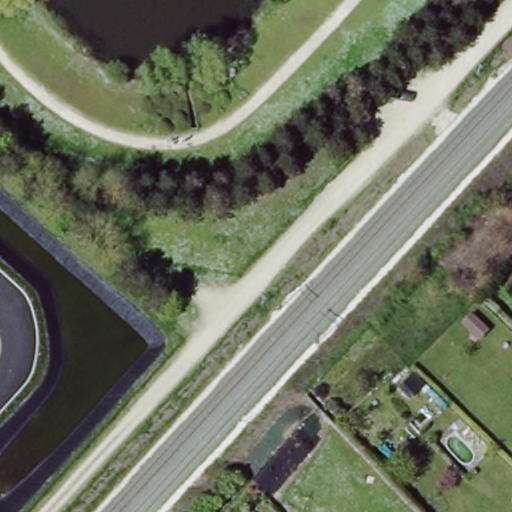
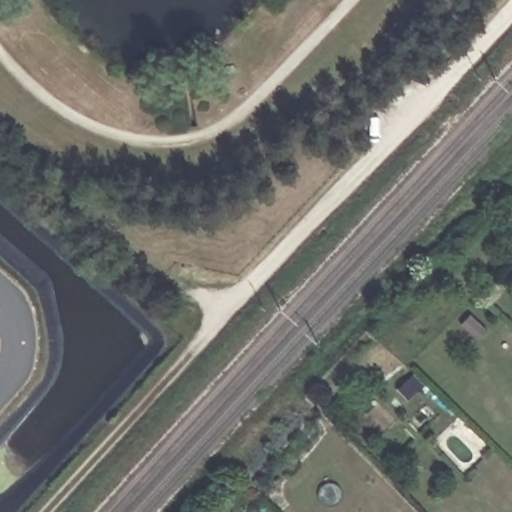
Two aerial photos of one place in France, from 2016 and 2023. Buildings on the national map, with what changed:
unchanged [(420,396),(411,404),(403,397),(411,388),(420,396)]

